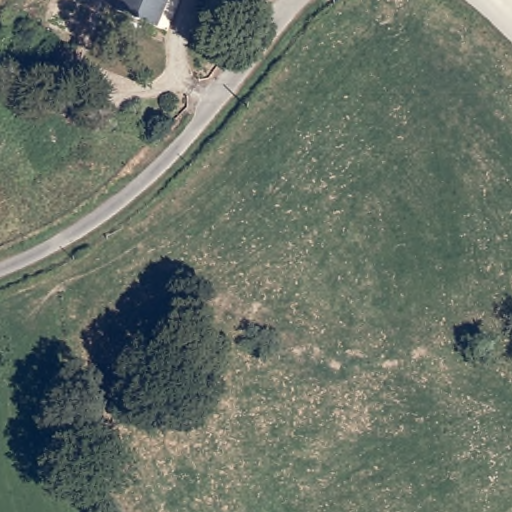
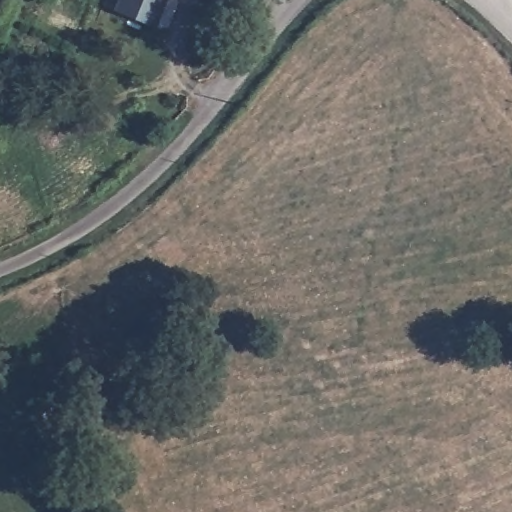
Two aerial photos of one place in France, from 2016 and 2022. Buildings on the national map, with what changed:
unchanged [(114,18),(121,0),(167,0),(154,33),(114,18)]
unchanged [(50,83),(59,86),(67,65),(91,73),(101,76),(90,108),(46,90),(50,83)]

